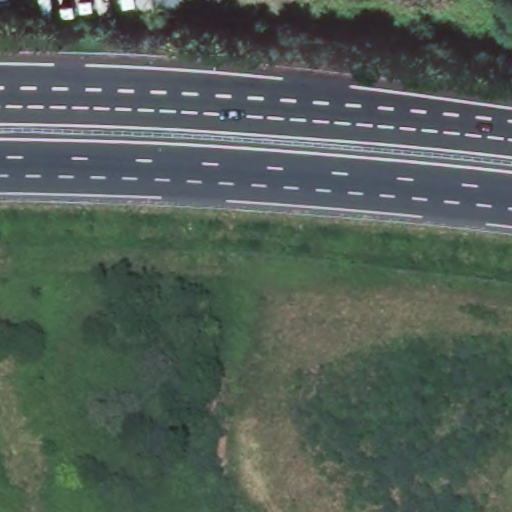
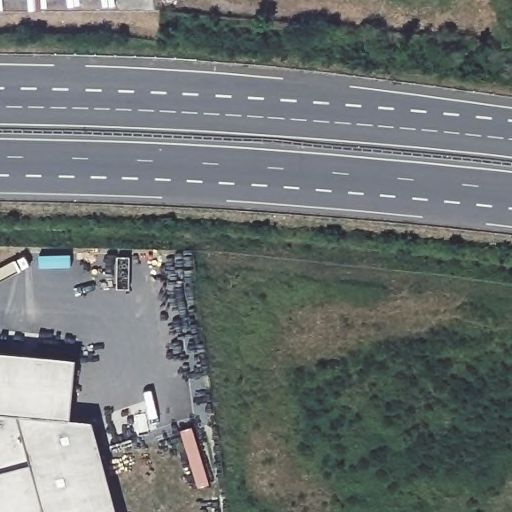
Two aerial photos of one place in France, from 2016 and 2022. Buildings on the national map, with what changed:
new [(70,416),(91,417),(117,512),(0,512),(0,350),(74,356),(70,416)]

